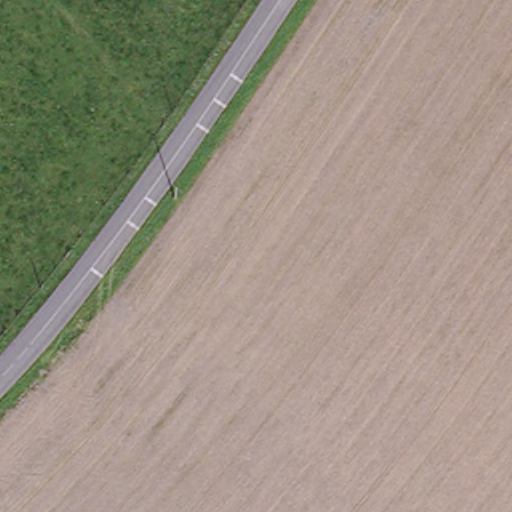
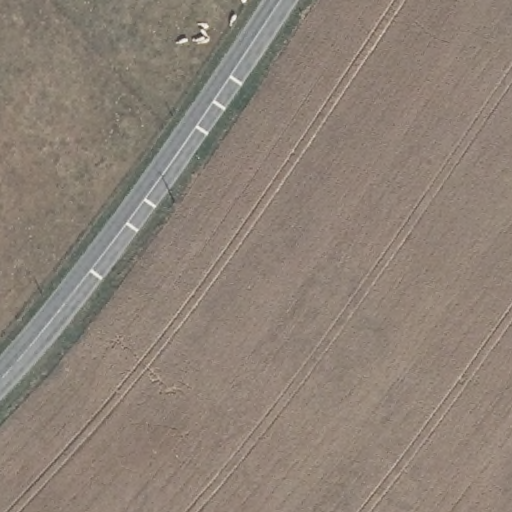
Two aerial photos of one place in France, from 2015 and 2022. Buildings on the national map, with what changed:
[]

